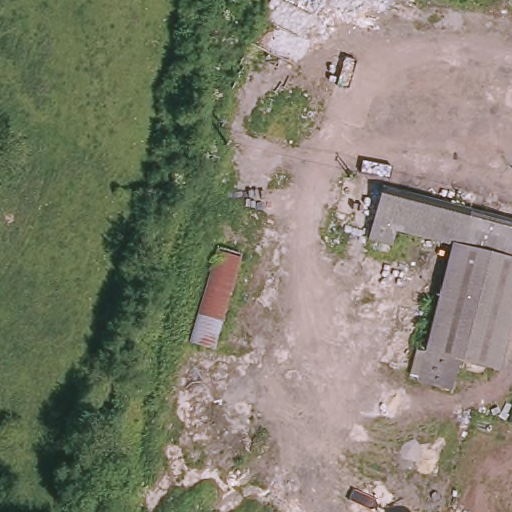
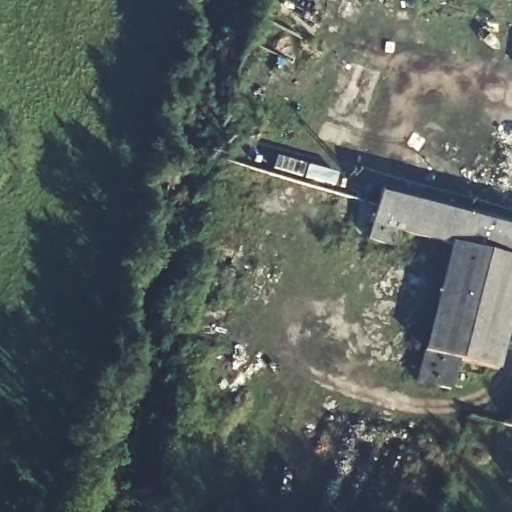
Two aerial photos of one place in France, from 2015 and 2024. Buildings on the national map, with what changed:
unchanged [(454,390),(418,378),(422,348),(447,245),(392,230),(389,242),(354,232),(366,184),(512,222),(512,317),(502,365),(460,360),(454,390)]
demolished [(210,258),(240,266),(220,346),(190,339),(210,258)]

